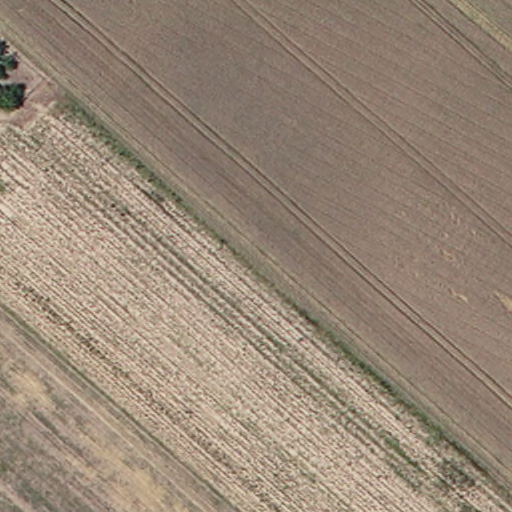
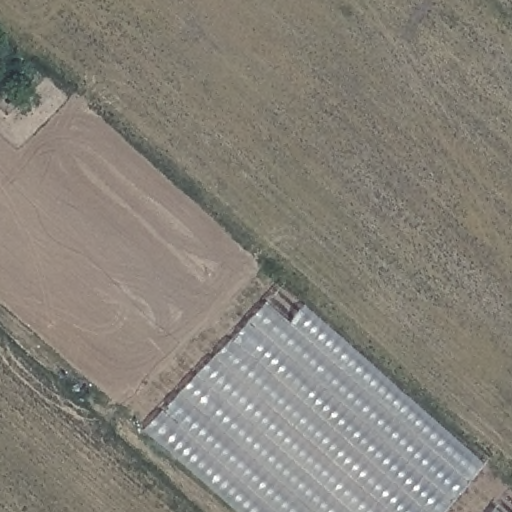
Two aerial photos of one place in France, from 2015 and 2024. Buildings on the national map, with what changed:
new [(141,431),(264,303),(286,323),(302,305),(482,466),(443,512),(232,512),(141,431)]
new [(492,510),(494,512),(491,512),(492,510)]

